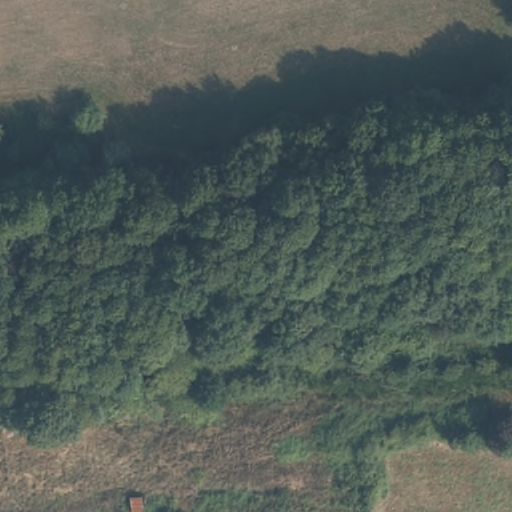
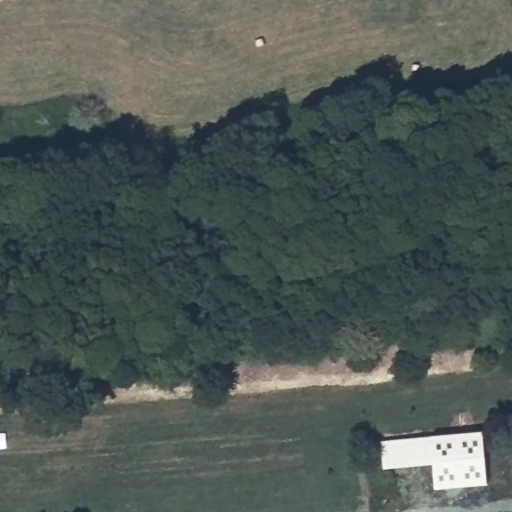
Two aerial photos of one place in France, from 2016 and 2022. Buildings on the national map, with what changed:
new [(380,441),(483,432),(487,485),(433,490),(431,466),(383,471),(380,441)]

